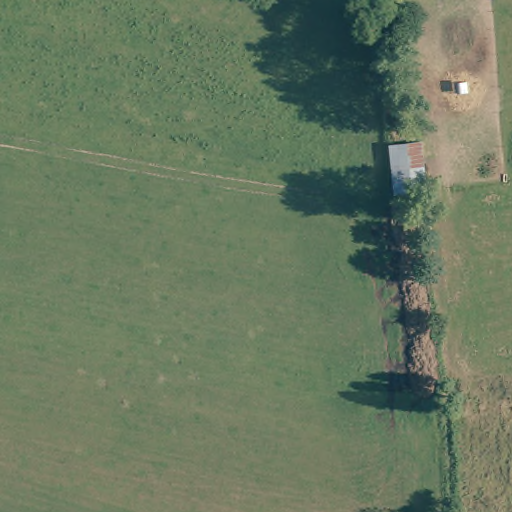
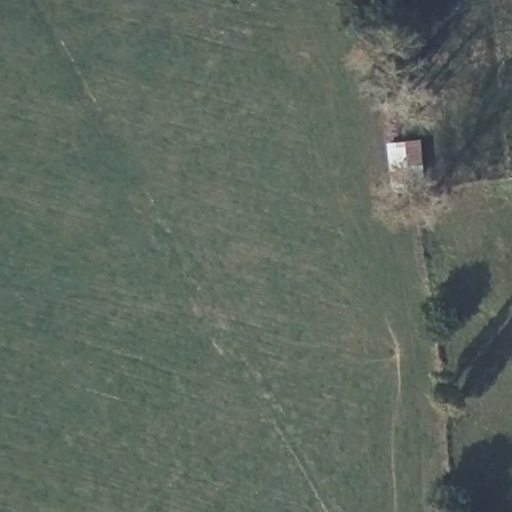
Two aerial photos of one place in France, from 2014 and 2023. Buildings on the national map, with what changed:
unchanged [(420,137),(423,187),(406,189),(401,140),(420,137)]

